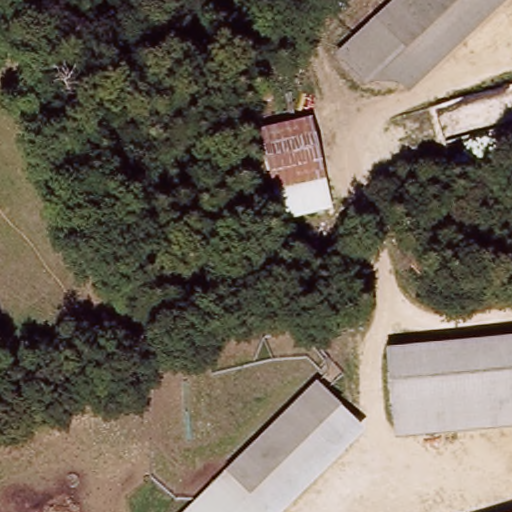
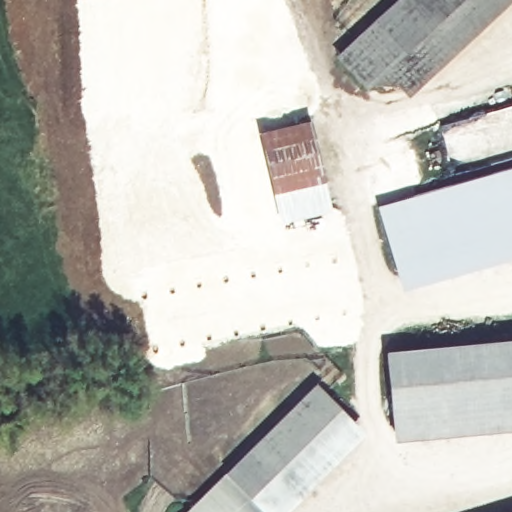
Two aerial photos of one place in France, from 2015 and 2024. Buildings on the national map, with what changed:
unchanged [(399,83),(369,83),(342,54),(377,22),(397,43),(445,0),(490,0),(399,83)]
unchanged [(401,0),(445,0),(397,43),(377,22),(401,0)]
unchanged [(333,212),(279,221),(259,132),(311,120),(333,212)]
new [(512,172),(512,241),(395,275),(377,211),(512,172)]
unchanged [(512,340),(512,429),(393,440),(386,352),(512,340)]
unchanged [(281,512),(185,512),(224,472),(315,383),(364,430),(281,512)]

